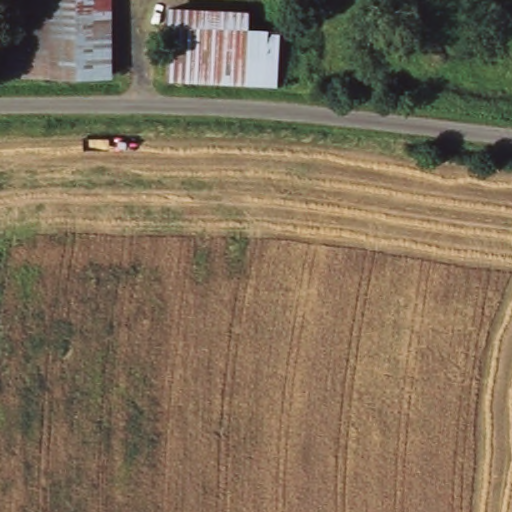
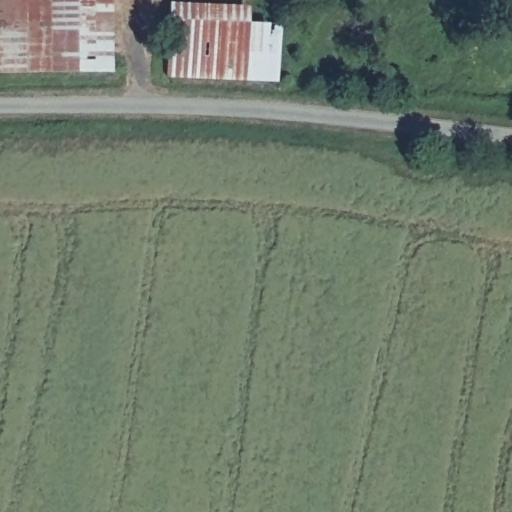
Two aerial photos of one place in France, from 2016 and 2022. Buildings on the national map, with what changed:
unchanged [(114,0),(114,73),(0,73),(0,0),(114,0)]
unchanged [(166,79),(170,3),(255,5),(254,23),(284,24),(280,83),(166,79)]

